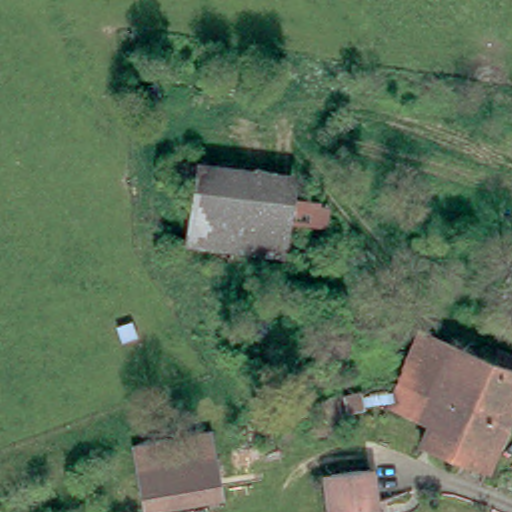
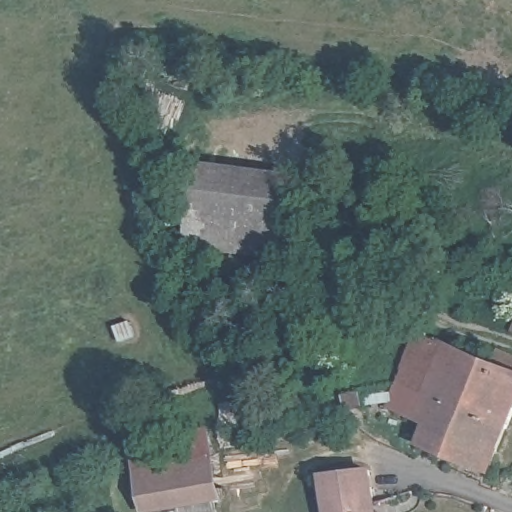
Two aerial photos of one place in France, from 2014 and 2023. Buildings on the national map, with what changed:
unchanged [(302,182),(286,258),(189,242),(206,155),(303,175),(302,182)]
unchanged [(413,326),(428,333),(430,330),(500,360),(507,347),(512,350),(512,426),(510,431),(407,378),(419,353),(404,347),(413,326)]
unchanged [(394,407),(407,378),(510,431),(490,473),(424,443),(432,422),(394,407)]
unchanged [(152,506),(142,466),(216,452),(223,492),(152,506)]
unchanged [(338,512),(335,477),(380,473),(382,512),(338,512)]

